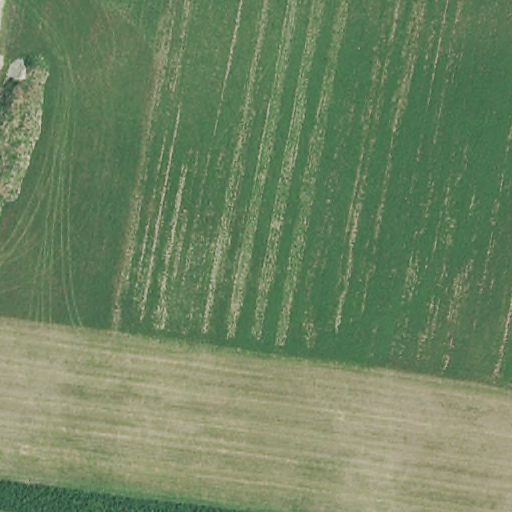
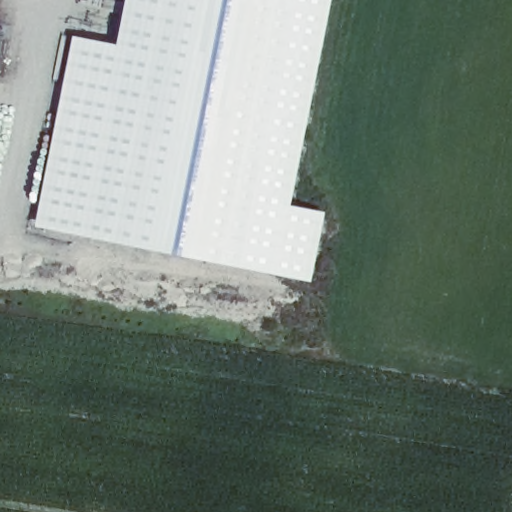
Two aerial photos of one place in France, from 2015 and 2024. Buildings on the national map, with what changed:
new [(324,210),(309,287),(33,229),(72,39),(113,45),(122,0),(326,0),(286,202),(324,210)]

